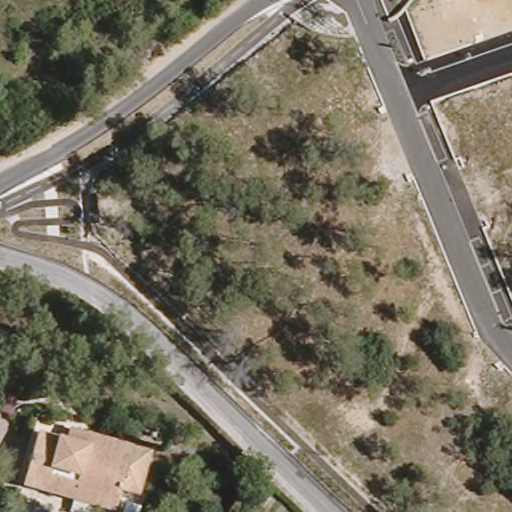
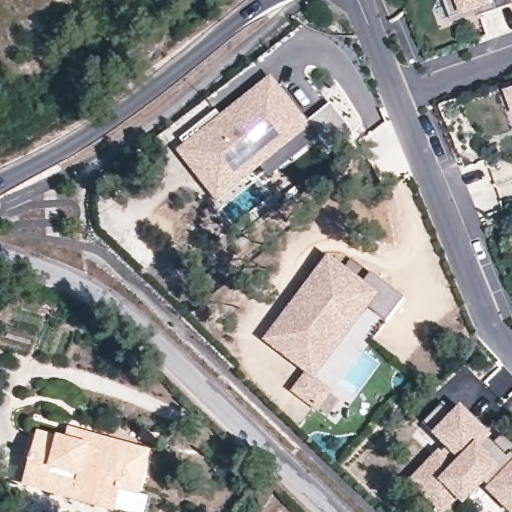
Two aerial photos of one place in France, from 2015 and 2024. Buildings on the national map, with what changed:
new [(451,18),(445,0),(493,0),(497,11),(479,17),(478,14),(453,23),(451,18)]
unchanged [(512,5),(497,11),(493,0),(512,0),(512,5)]
new [(512,89),(512,107),(506,91),(512,89)]
new [(306,124),(255,165),(249,156),(207,190),(193,172),(196,169),(184,153),(222,122),(229,132),(280,92),(293,109),(306,124)]
new [(329,106),(351,133),(328,152),(306,124),(311,120),(329,106)]
new [(340,275),(350,261),(403,301),(363,353),(361,352),(316,411),(293,394),(309,373),(269,342),(328,266),(340,275)]
new [(452,415),(459,409),(492,443),(501,434),(512,445),(512,449),(509,452),(512,455),(512,487),(511,487),(498,500),(474,475),(439,509),(410,478),(445,445),(421,420),(440,402),(452,415)]
unchanged [(70,491),(22,478),(36,429),(64,436),(67,423),(83,428),(147,445),(135,489),(118,485),(112,504),(70,491)]
new [(512,487),(512,512),(510,512),(498,500),(511,487),(512,487)]

